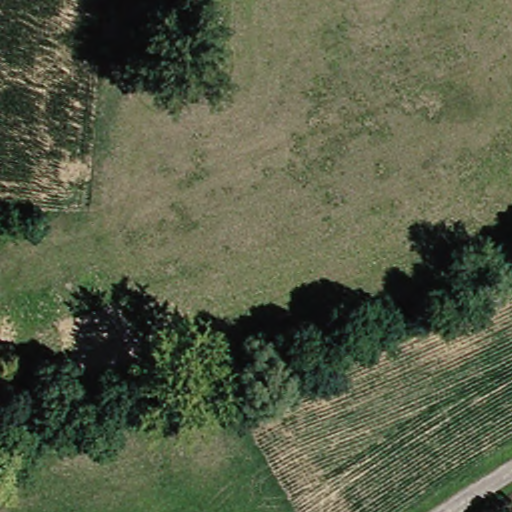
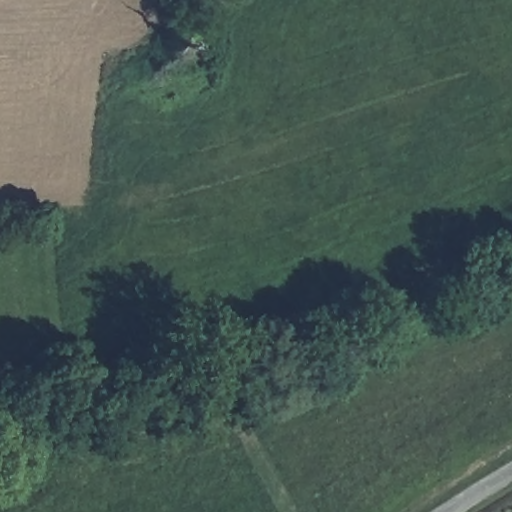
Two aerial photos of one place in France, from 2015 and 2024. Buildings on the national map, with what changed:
[]

